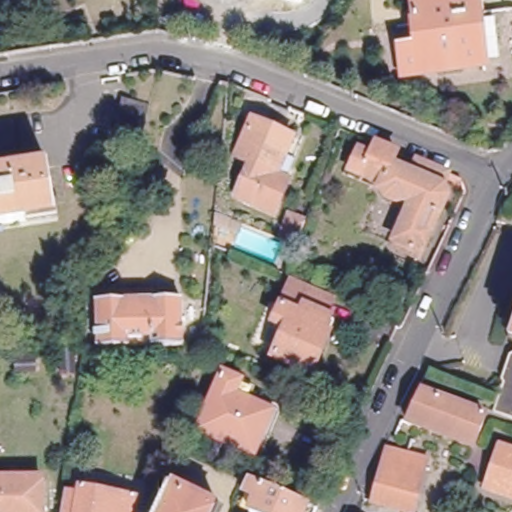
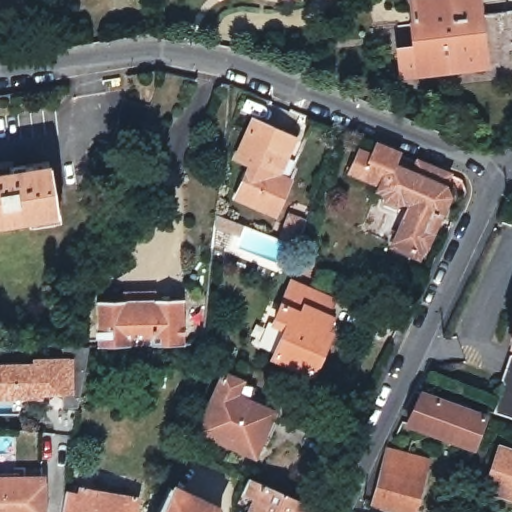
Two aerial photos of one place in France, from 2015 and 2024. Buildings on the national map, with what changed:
unchanged [(512,15),(512,51),(488,54),(489,69),(406,78),(402,52),(423,50),(417,4),(447,0),(481,0),(483,18),(512,15)]
unchanged [(139,150),(113,143),(123,99),(150,105),(139,150)]
unchanged [(297,139),(280,176),(292,182),(279,213),(240,197),(254,166),(241,160),(258,121),(297,139)]
unchanged [(457,189),(460,202),(434,259),(409,247),(428,205),(418,200),(415,204),(401,197),(401,192),(395,190),(395,186),(363,172),(371,154),(384,159),(391,145),(411,153),(406,166),(422,173),(428,160),(462,175),(457,189)]
unchanged [(4,169),(19,166),(19,170),(56,165),(64,215),(0,225),(0,174),(4,173),(4,169)]
unchanged [(274,361),(286,335),(274,329),(290,289),(332,307),(325,323),(335,327),(329,341),(312,378),(274,361)]
unchanged [(104,296),(136,296),(159,295),(189,295),(189,327),(211,327),(210,340),(104,342),(104,296)]
new [(30,356),(60,356),(61,344),(86,346),(79,408),(63,407),(63,393),(45,394),(45,397),(0,398),(0,362),(31,361),(30,356)]
unchanged [(512,359),(512,417),(496,412),(506,386),(506,377),(512,359)]
unchanged [(252,455),(199,431),(222,375),(238,383),(253,390),(247,402),(270,412),(252,455)]
unchanged [(429,394),(492,417),(479,447),(414,424),(429,394)]
unchanged [(436,458),(421,509),(378,497),(379,494),(393,445),(436,458)]
unchanged [(491,487),(507,445),(512,447),(512,495),(491,487)]
unchanged [(305,512),(253,512),(259,498),(246,492),(252,479),(309,503),(305,512)]
unchanged [(43,512),(0,512),(0,480),(44,480),(43,512)]
unchanged [(224,512),(161,512),(173,487),(224,512)]
unchanged [(92,488),(110,491),(109,495),(144,501),(142,512),(72,512),(74,498),(90,501),(92,488)]

